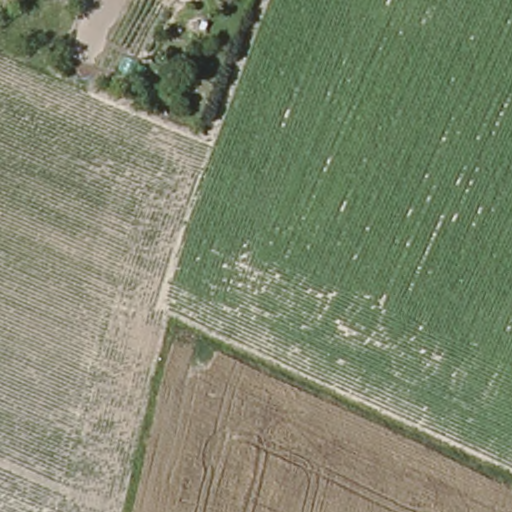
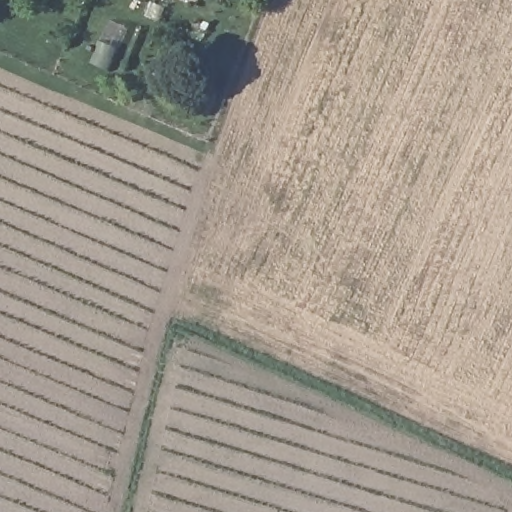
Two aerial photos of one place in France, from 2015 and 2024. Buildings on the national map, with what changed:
unchanged [(185,1),(181,0),(186,0),(185,1)]

